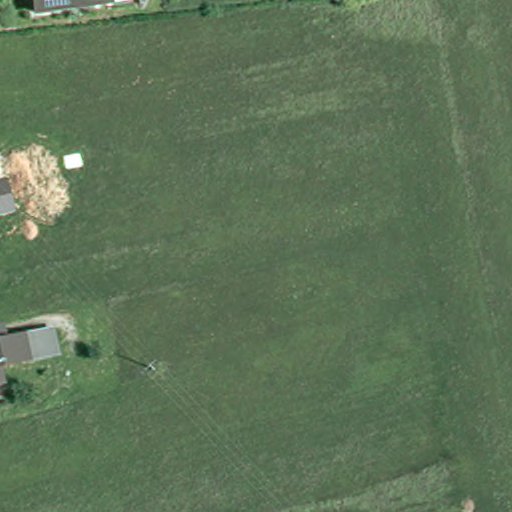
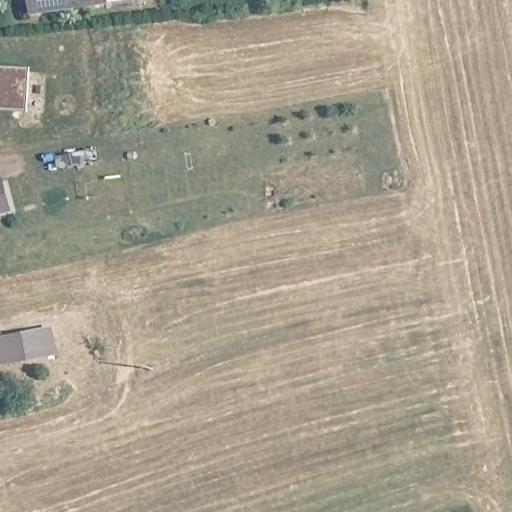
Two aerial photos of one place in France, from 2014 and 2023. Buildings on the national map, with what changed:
unchanged [(36,10),(35,0),(108,0),(36,10)]
new [(33,112),(0,110),(0,66),(36,68),(33,112)]
unchanged [(13,215),(0,218),(0,182),(5,181),(13,215)]
unchanged [(0,332),(3,343),(49,333),(55,355),(0,369),(0,332)]

